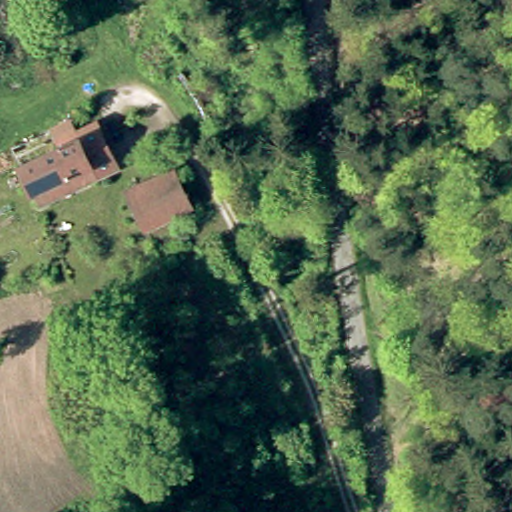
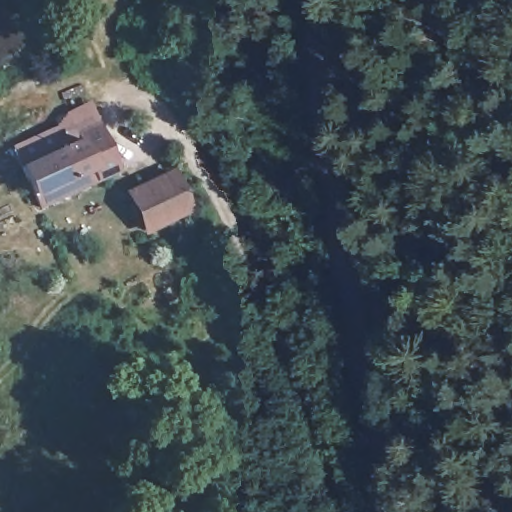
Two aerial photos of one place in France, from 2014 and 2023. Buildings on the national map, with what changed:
unchanged [(36,211),(20,170),(32,164),(79,142),(98,181),(36,211)]
unchanged [(130,190),(153,179),(170,215),(146,227),(130,190)]

